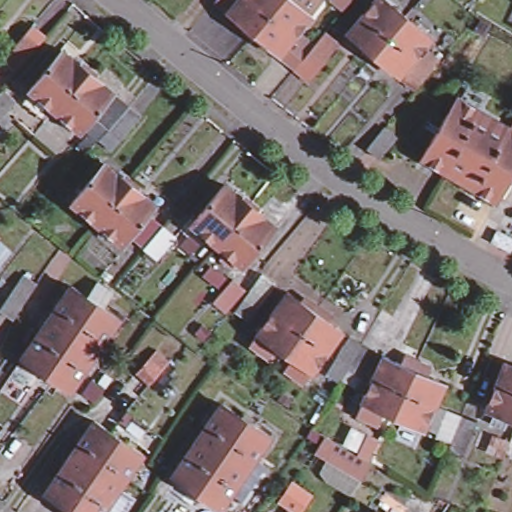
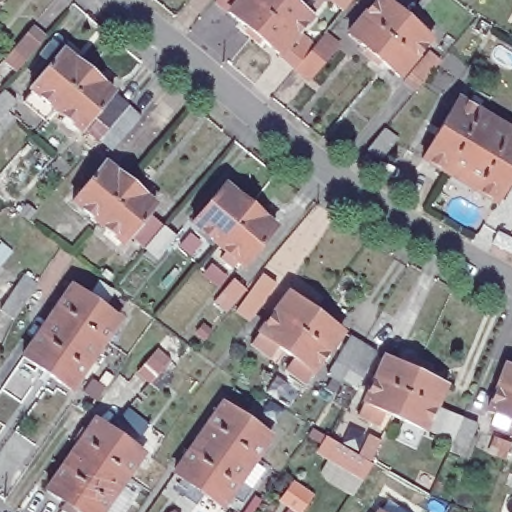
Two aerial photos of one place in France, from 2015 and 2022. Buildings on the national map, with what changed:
unchanged [(294,73),(278,60),(255,41),(230,20),(217,9),(221,4),(224,0),(283,0),(286,2),(288,0),(302,0),(316,12),(309,21),(296,37),(312,50),(323,37),(335,47),(305,83),(294,73)]
unchanged [(335,22),(323,10),(332,0),(352,0),(353,1),(335,22)]
unchanged [(400,25),(392,32),(367,62),(342,42),(375,5),(400,25)]
unchanged [(424,45),(394,84),(367,62),(392,32),(400,25),(424,45)]
unchanged [(16,52),(37,29),(49,39),(44,45),(29,62),(16,52)]
unchanged [(30,92),(65,53),(90,74),(82,83),(56,114),(30,92)]
unchanged [(399,87),(422,57),(435,69),(424,82),(411,97),(399,87)]
unchanged [(114,93),(81,135),(56,114),(82,83),(90,74),(114,93)]
unchanged [(14,100),(0,115),(0,87),(14,100)]
unchanged [(90,135),(89,132),(117,98),(129,109),(142,120),(122,145),(109,132),(100,142),(88,156),(79,149),(90,135)]
unchanged [(479,118),(475,126),(502,142),(488,167),(458,150),(445,172),(441,178),(418,165),(454,104),(479,118)]
unchanged [(361,142),(377,123),(377,124),(390,134),(374,152),(361,142)]
unchanged [(512,125),(512,176),(492,210),(468,195),(472,188),(445,172),(458,150),(488,167),(502,142),(505,136),(512,125)]
unchanged [(135,187),(115,210),(104,224),(80,205),(110,167),(135,187)]
unchanged [(245,204),(217,238),(212,243),(188,222),(222,183),(245,204)]
unchanged [(160,206),(130,245),(104,224),(115,210),(135,187),(160,206)]
unchanged [(270,225),(237,264),(212,243),(217,238),(245,204),(270,225)]
unchanged [(161,263),(149,253),(138,244),(158,217),(170,227),(182,237),(161,263)]
unchanged [(497,227),(512,235),(512,250),(490,239),(497,227)]
unchanged [(10,312),(10,313),(0,307),(0,301),(22,268),(34,277),(10,312)]
unchanged [(279,282),(250,317),(236,305),(265,270),(279,282)]
unchanged [(247,285),(228,308),(215,297),(234,275),(247,285)]
unchanged [(75,290),(123,324),(108,345),(84,328),(64,356),(41,340),(75,290)]
unchanged [(280,350),(272,361),(252,347),(288,296),(315,316),(287,355),(280,350)]
unchanged [(289,372),(296,361),(287,355),(315,316),(342,336),(308,387),(289,372)]
unchanged [(25,362),(41,340),(64,356),(84,328),(108,345),(73,395),(25,362)]
unchanged [(339,385),(327,376),(352,338),(364,346),(377,354),(362,380),(348,371),(339,385)]
unchanged [(162,353),(140,373),(129,360),(150,340),(162,353)]
unchanged [(385,414),(382,422),(365,413),(369,407),(362,403),(384,359),(414,373),(400,402),(392,417),(385,414)]
unchanged [(507,364),(512,366),(512,430),(510,435),(491,427),(496,415),(488,411),(507,364)]
unchanged [(445,388),(425,433),(418,430),(415,436),(402,430),(404,424),(392,417),(400,402),(414,373),(445,388)]
unchanged [(462,449),(445,442),(430,436),(442,407),(457,413),(474,420),(462,449)]
unchanged [(269,442),(220,510),(175,476),(224,408),(269,442)]
unchanged [(100,425),(148,456),(131,481),(107,465),(90,488),(69,474),(100,425)]
unchanged [(364,456),(352,448),(362,428),(375,434),(364,456)]
unchanged [(312,446),(321,431),(365,459),(356,474),(312,446)]
unchanged [(107,465),(131,481),(109,512),(77,512),(54,497),(69,474),(90,488),(107,465)]
unchanged [(305,491),(292,507),(276,496),(288,479),(305,491)]

